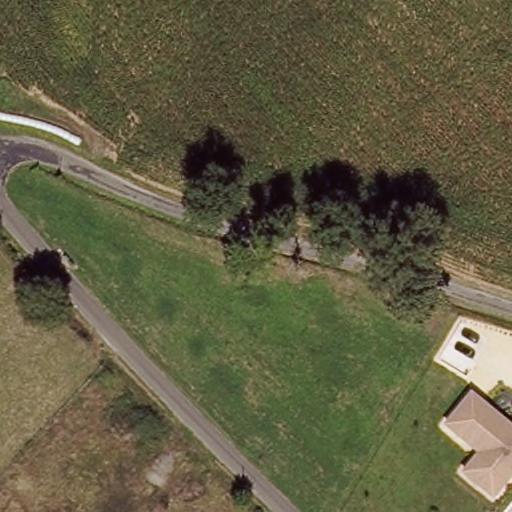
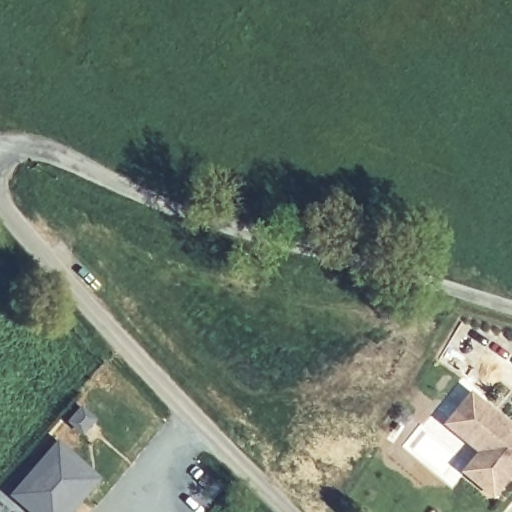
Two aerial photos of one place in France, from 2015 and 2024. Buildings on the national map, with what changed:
unchanged [(512,428),(512,478),(494,499),(461,474),(477,452),(446,425),(472,391),(512,428)]
new [(81,405),(98,421),(83,437),(66,422),(81,405)]
new [(104,478),(75,512),(28,512),(9,495),(59,436),(104,478)]

